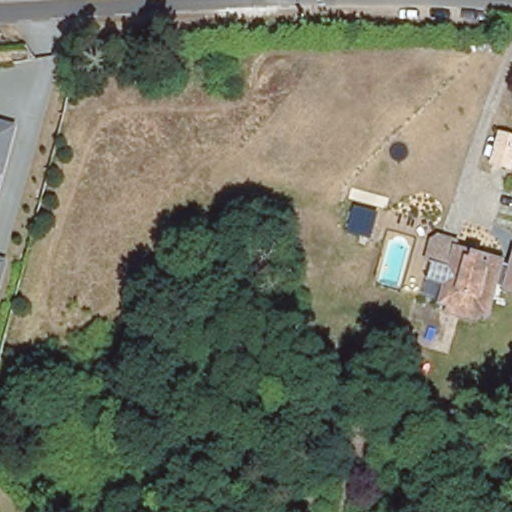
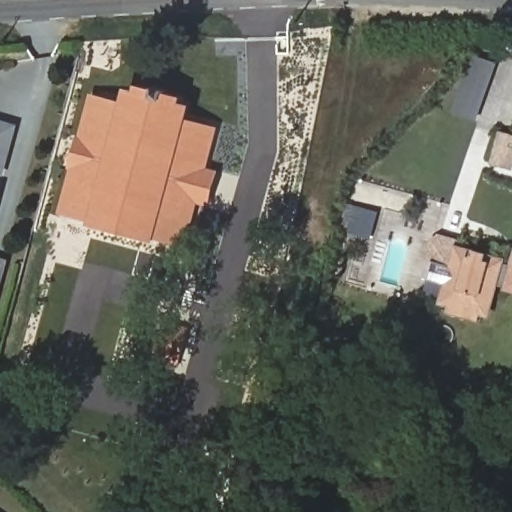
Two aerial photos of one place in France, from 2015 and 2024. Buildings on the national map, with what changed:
new [(475,120),(452,111),(475,56),(497,65),(475,120)]
new [(71,169),(70,169),(79,135),(80,136),(90,94),(121,102),(125,88),(134,90),(136,85),(182,98),(180,102),(190,105),(186,119),(218,128),(207,168),(219,171),(210,203),(206,202),(205,206),(197,204),(186,247),(155,238),(155,243),(88,225),(90,221),(60,214),(71,169)]
unchanged [(4,175),(0,175),(0,129),(15,133),(4,175)]
unchanged [(505,143),(498,160),(489,158),(497,129),(512,133),(512,145),(505,143)]
unchanged [(501,287),(492,315),(485,313),(485,319),(452,311),(454,305),(446,303),(450,285),(431,279),(436,261),(425,259),(430,238),(442,233),(465,239),(461,249),(506,260),(505,266),(512,269),(512,290),(501,287)]
unchanged [(0,288),(0,266),(5,268),(0,288)]
new [(185,328),(175,364),(156,359),(165,323),(185,328)]

